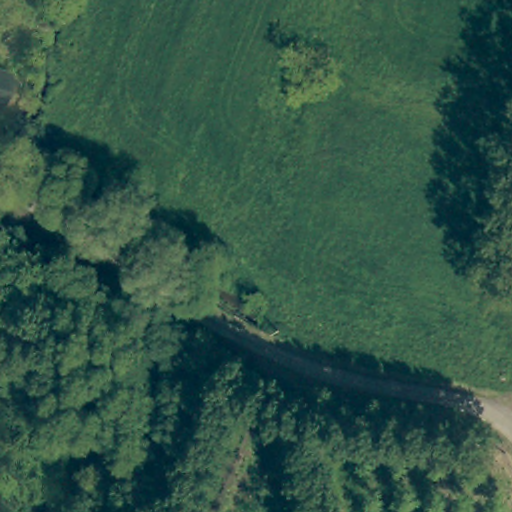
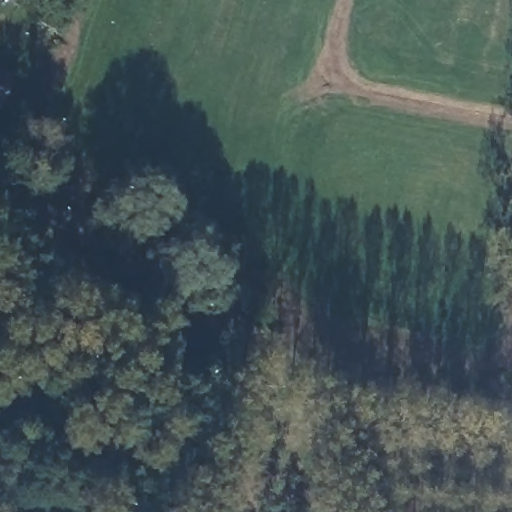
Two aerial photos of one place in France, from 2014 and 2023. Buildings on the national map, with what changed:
unchanged [(0,103),(0,66),(21,70),(15,106),(0,103)]

